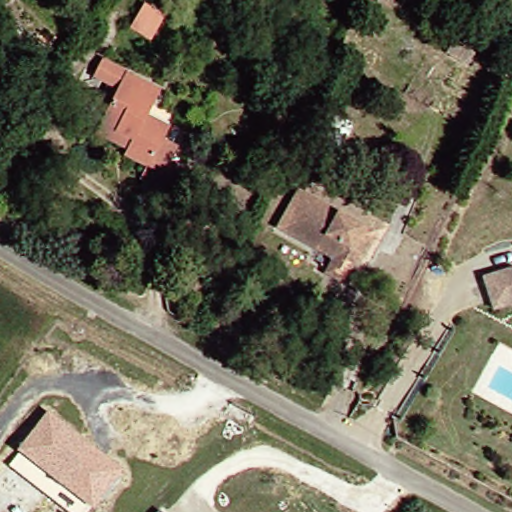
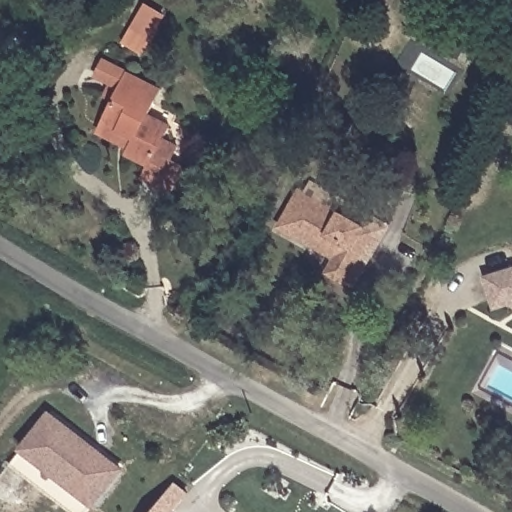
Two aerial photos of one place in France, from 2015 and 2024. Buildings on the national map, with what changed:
unchanged [(162,13),(148,37),(138,32),(145,20),(138,16),(145,3),(162,13)]
unchanged [(147,185),(134,178),(140,166),(116,154),(123,139),(92,124),(117,71),(151,88),(138,114),(160,125),(146,154),(173,168),(161,192),(147,185)]
unchanged [(296,176),(380,223),(344,288),(336,283),(365,231),(289,189),(296,176)]
unchanged [(365,231),(336,283),(316,272),(323,260),(321,256),(268,227),(289,189),(365,231)]
unchanged [(487,276),(512,268),(512,303),(498,308),(487,276)]
unchanged [(29,439),(56,403),(128,458),(101,493),(29,439)]
unchanged [(17,454),(29,439),(101,493),(89,509),(17,454)]
new [(190,492),(174,512),(152,512),(176,481),(190,492)]

